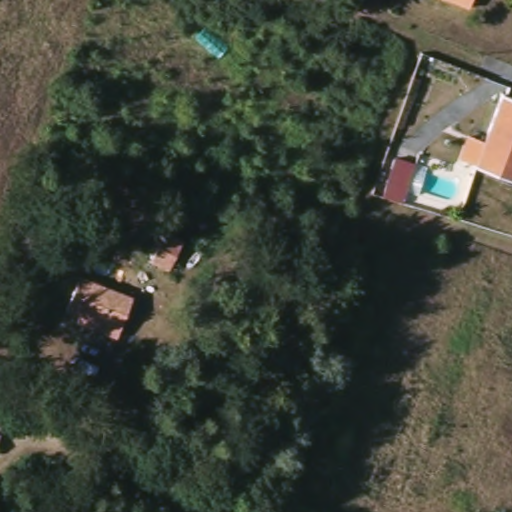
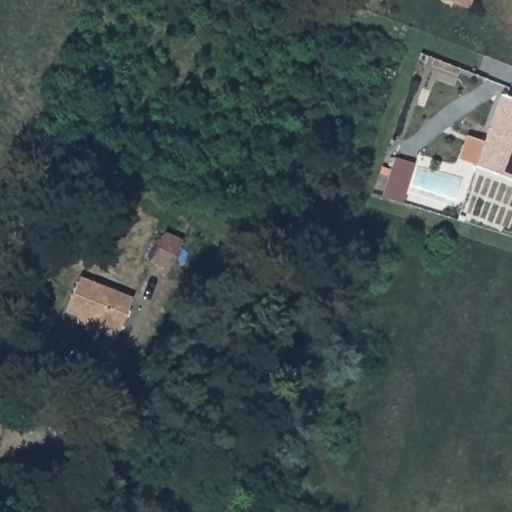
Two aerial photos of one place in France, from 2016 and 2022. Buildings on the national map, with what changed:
unchanged [(473,1),(470,0),(474,0),(473,1)]
unchanged [(512,101),(512,178),(480,167),(503,98),(512,101)]
unchanged [(158,258),(169,227),(186,232),(175,265),(158,258)]
unchanged [(123,336),(84,320),(87,315),(71,310),(82,280),(96,285),(99,280),(139,295),(123,336)]
unchanged [(0,437),(0,425),(4,426),(0,437)]

